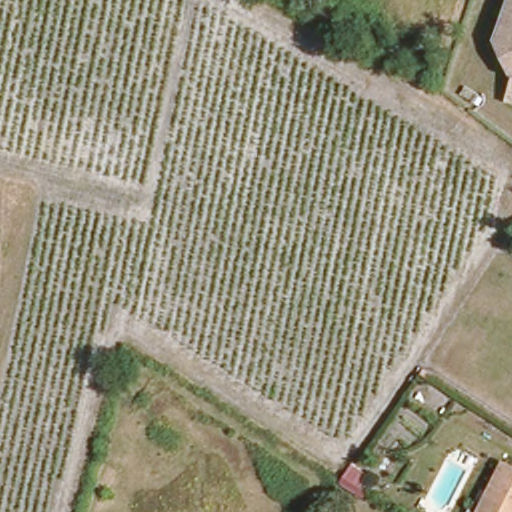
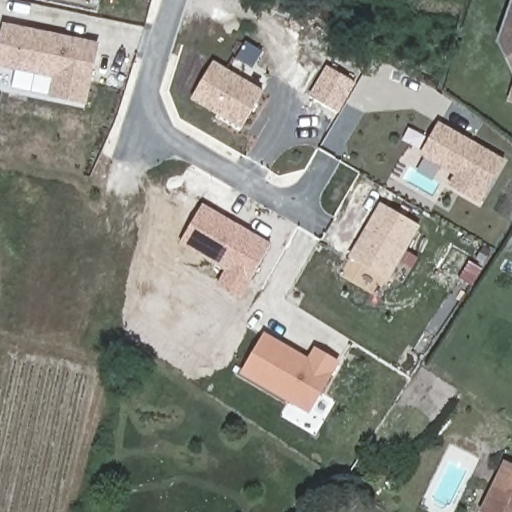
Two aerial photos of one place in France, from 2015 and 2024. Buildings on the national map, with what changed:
unchanged [(512,72),(497,41),(512,1),(512,72)]
unchanged [(330,16),(324,32),(306,25),(311,9),(330,16)]
new [(99,44),(88,106),(50,99),(52,81),(0,70),(0,36),(2,24),(99,44)]
unchanged [(370,35),(364,52),(335,41),(341,24),(370,35)]
new [(263,93),(242,130),(192,102),(214,64),(263,93)]
new [(512,104),(507,102),(512,90),(512,104)]
new [(504,162),(480,207),(448,189),(454,177),(420,157),(438,124),(504,162)]
new [(420,226),(391,279),(352,255),(379,202),(420,226)]
new [(272,243),(242,298),(219,283),(225,269),(182,245),(204,205),(272,243)]
new [(310,357),(315,347),(342,359),(311,413),(242,373),(267,333),(310,357)]
unchanged [(501,470),(512,476),(512,512),(479,512),(501,470)]

